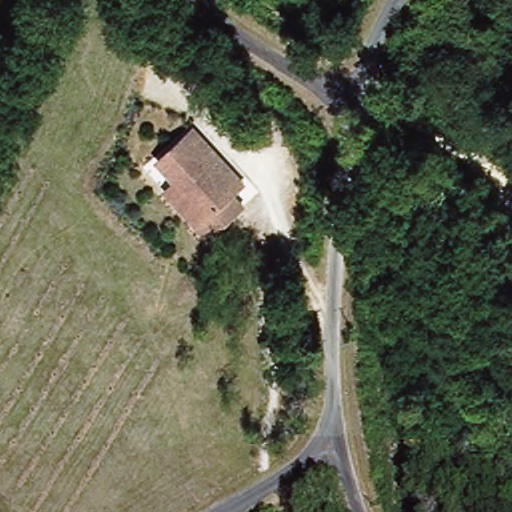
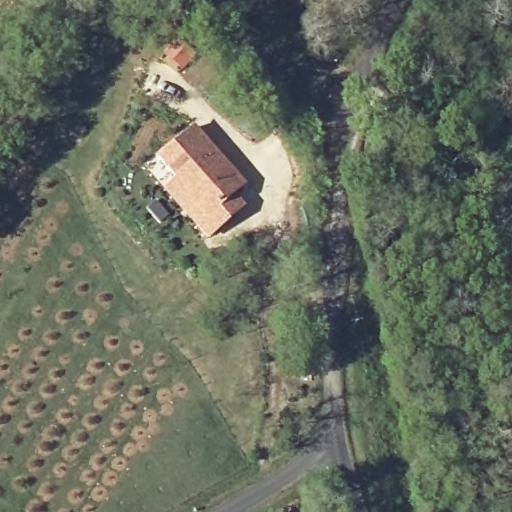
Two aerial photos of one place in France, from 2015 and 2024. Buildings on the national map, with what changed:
unchanged [(178,179),(161,159),(196,128),(246,185),(233,196),(244,208),(209,238),(197,224),(167,189),(178,179)]

